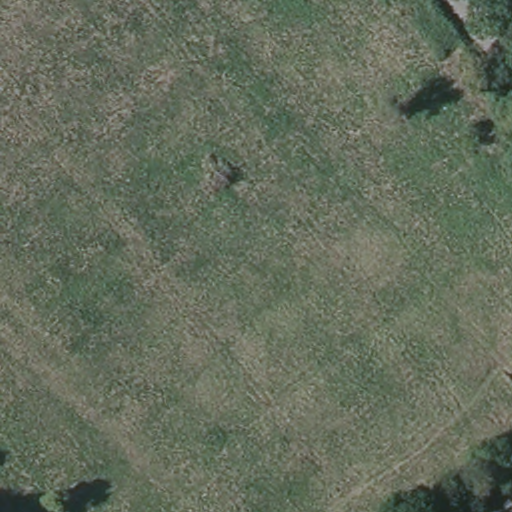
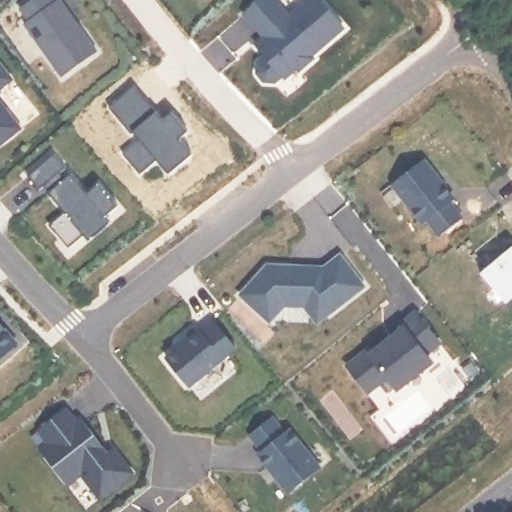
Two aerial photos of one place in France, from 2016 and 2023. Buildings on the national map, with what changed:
new [(22,24),(27,21),(15,6),(24,0),(52,0),(52,1),(53,0),(61,0),(97,50),(59,74),(22,24)]
new [(306,57),(310,62),(297,72),(291,67),(266,89),(246,65),(261,52),(252,42),(260,35),(239,14),(254,0),(272,0),(286,15),(304,0),(321,0),(342,27),(306,57)]
new [(0,63),(9,75),(0,82),(0,63)]
new [(0,101),(18,125),(0,139),(0,101)]
new [(69,241),(50,217),(65,205),(36,171),(60,151),(87,186),(99,176),(119,199),(69,241)]
new [(420,157),(451,197),(446,200),(458,216),(436,233),(424,217),(420,221),(389,181),(420,157)]
new [(480,272),(512,249),(512,301),(508,303),(480,272)]
new [(270,265),(325,267),(344,255),(370,287),(318,323),(304,307),(285,305),(270,322),(242,295),(270,265)]
new [(348,365),(370,347),(374,353),(407,327),(402,321),(418,308),(445,342),(432,352),(440,365),(403,392),(391,377),(371,393),(348,365)]
new [(166,360),(177,352),(173,348),(216,312),(242,345),(190,386),(166,360)]
new [(0,354),(0,316),(18,340),(0,354)]
new [(105,494),(86,472),(74,481),(35,435),(67,408),(93,437),(99,432),(134,472),(105,494)]
new [(254,451),(258,447),(246,431),(268,413),(280,429),(285,426),(316,465),(285,490),(254,451)]

